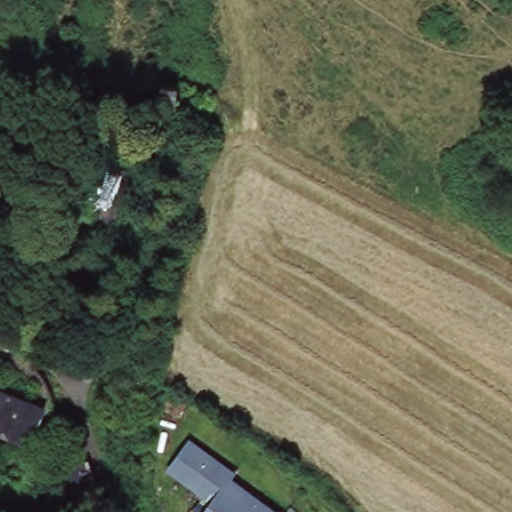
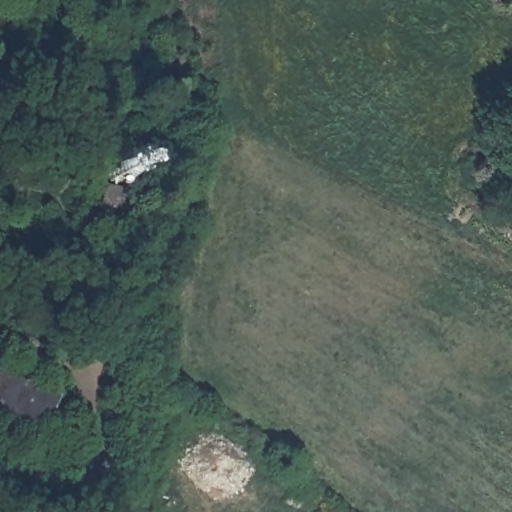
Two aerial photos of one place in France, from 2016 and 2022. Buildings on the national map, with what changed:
unchanged [(125,201),(116,245),(100,240),(106,218),(95,215),(100,195),(125,201)]
unchanged [(0,425),(0,379),(50,400),(34,440),(0,425)]
demolished [(199,442),(240,477),(236,482),(274,512),(235,512),(238,508),(225,497),(218,504),(177,470),(199,442)]
unchanged [(64,461),(90,452),(103,493),(79,502),(64,461)]

